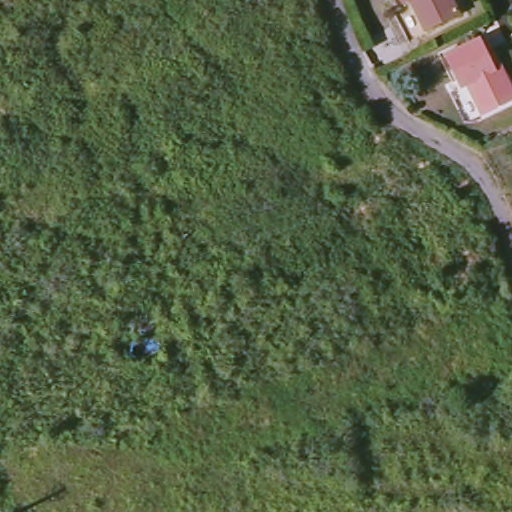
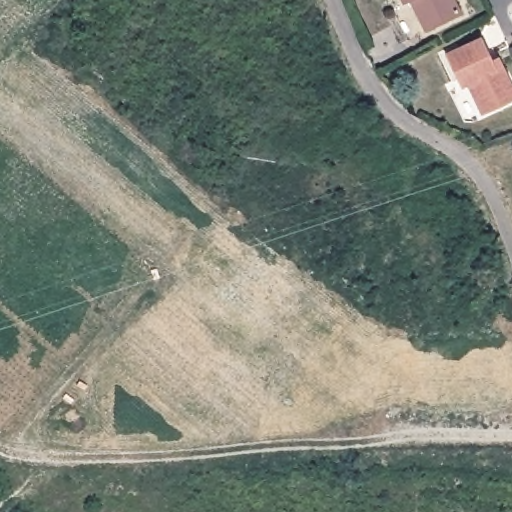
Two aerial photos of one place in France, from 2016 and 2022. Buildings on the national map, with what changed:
unchanged [(400,0),(409,0),(402,3),(400,0)]
unchanged [(409,0),(452,0),(459,13),(424,30),(409,0)]
unchanged [(482,113),(467,81),(459,84),(443,53),(480,36),(495,67),(502,63),(512,86),(512,98),(482,113)]

